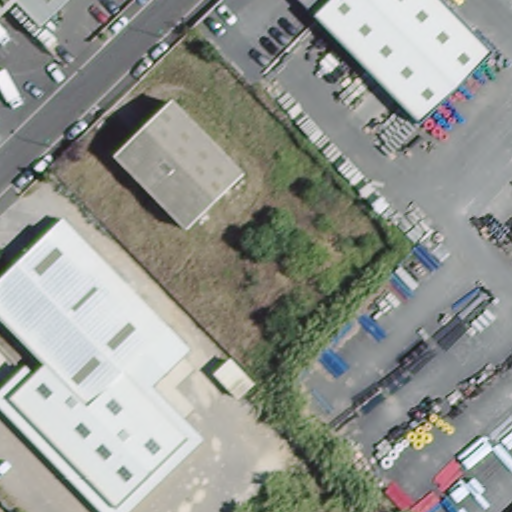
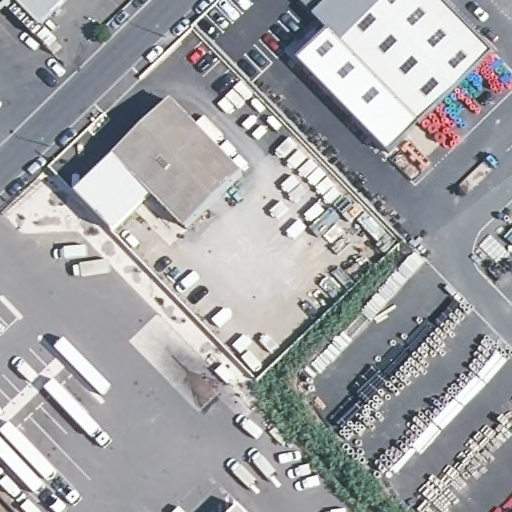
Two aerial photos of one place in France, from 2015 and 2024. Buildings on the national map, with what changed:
unchanged [(0,17),(0,0),(17,0),(0,17)]
unchanged [(43,24),(19,0),(68,0),(43,24)]
new [(299,0),(324,0),(311,12),(299,0)]
unchanged [(489,52),(416,124),(309,15),(324,0),(438,0),(489,52)]
new [(327,34),(416,124),(389,153),(300,61),(327,34)]
new [(113,231),(77,193),(168,102),(172,105),(115,161),(151,197),(113,231)]
unchanged [(244,179),(188,234),(115,161),(172,105),(244,179)]
demolished [(88,407),(39,356),(0,316),(0,280),(10,281),(9,270),(63,218),(170,327),(88,407)]
demolished [(152,384),(203,432),(125,512),(103,512),(0,403),(0,391),(39,356),(88,407),(170,327),(191,346),(152,384)]
new [(243,512),(234,512),(238,507),(243,512)]

